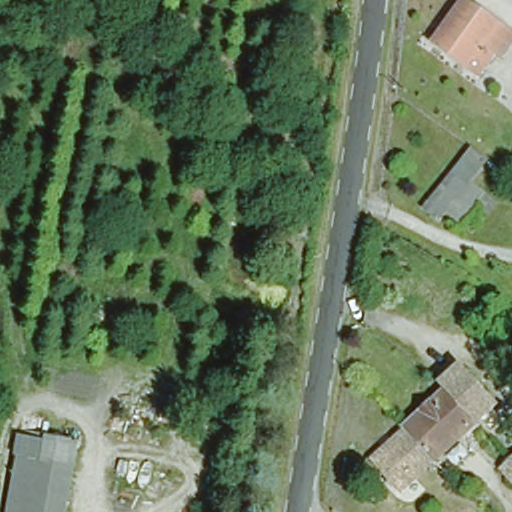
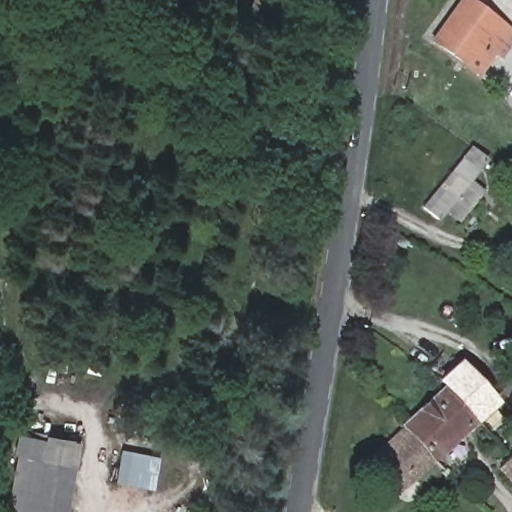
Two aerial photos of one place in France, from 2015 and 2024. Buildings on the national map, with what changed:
unchanged [(496,51),(478,75),(432,41),(462,0),(466,0),(510,31),(512,33),(512,38),(500,54),(496,51)]
unchanged [(477,172),(471,179),(482,190),(458,216),(447,206),(436,216),(423,204),(463,159),(477,172)]
unchanged [(448,386),(443,380),(460,366),(495,402),(477,418),(448,386)]
unchanged [(477,418),(400,486),(373,455),(402,431),(405,422),(448,386),(477,418)]
new [(114,480),(121,449),(160,458),(152,490),(114,480)]
unchanged [(20,453),(41,456),(30,512),(9,512),(20,453)]
unchanged [(76,464),(67,512),(30,512),(41,456),(76,464)]
unchanged [(512,456),(512,482),(498,468),(512,456)]

